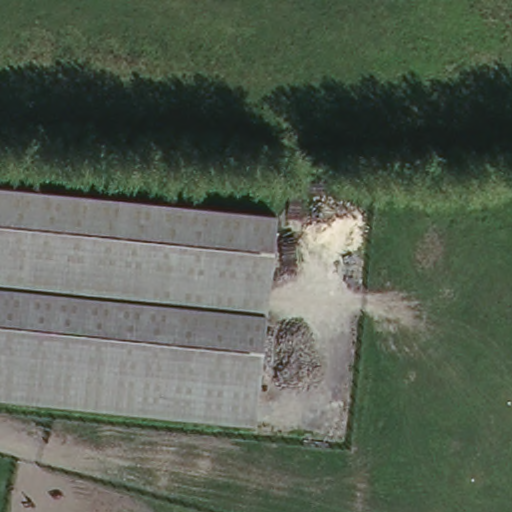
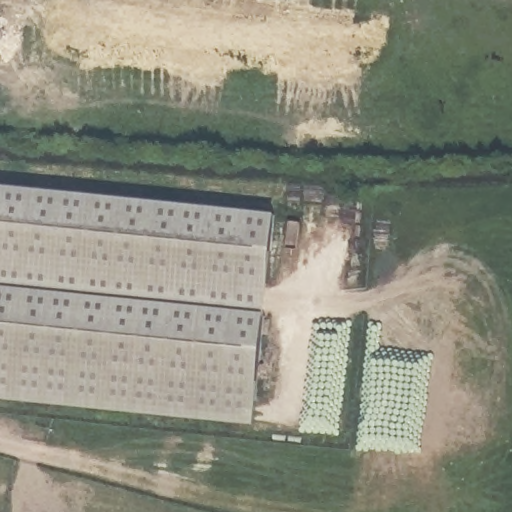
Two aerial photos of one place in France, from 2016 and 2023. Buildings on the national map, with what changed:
unchanged [(277,211),(258,419),(0,394),(0,183),(277,211)]

